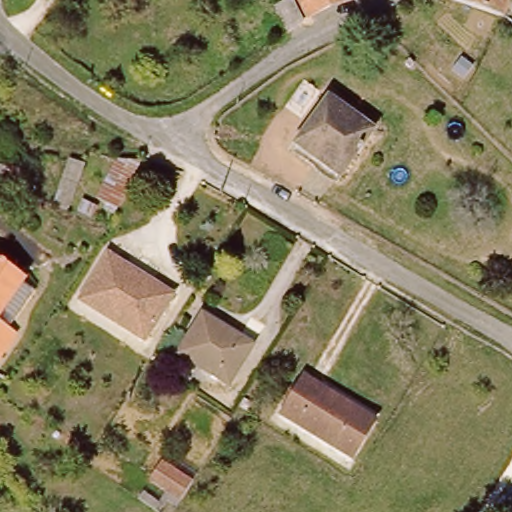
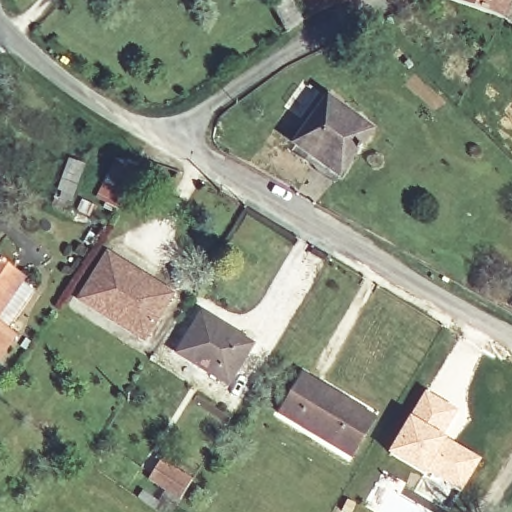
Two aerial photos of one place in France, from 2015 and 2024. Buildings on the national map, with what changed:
unchanged [(293,4),(302,0),(311,0),(323,17),(308,27),(293,4)]
unchanged [(329,12),(322,0),(361,0),(329,12)]
unchanged [(466,0),(512,0),(512,17),(466,0)]
unchanged [(349,176),(309,144),(346,98),(387,130),(349,176)]
unchanged [(131,211),(109,203),(130,157),(154,162),(131,211)]
unchanged [(173,292),(145,337),(81,299),(108,255),(173,292)]
unchanged [(38,280),(10,325),(30,339),(14,362),(0,352),(0,265),(4,258),(38,280)]
unchanged [(266,342),(243,378),(192,351),(213,312),(266,342)]
unchanged [(387,414),(364,450),(297,409),(318,375),(387,414)]
new [(427,388),(459,410),(444,435),(482,459),(462,493),(453,488),(444,502),(439,498),(436,503),(414,491),(423,475),(387,454),(427,388)]
unchanged [(196,497),(164,477),(175,460),(207,480),(196,497)]

